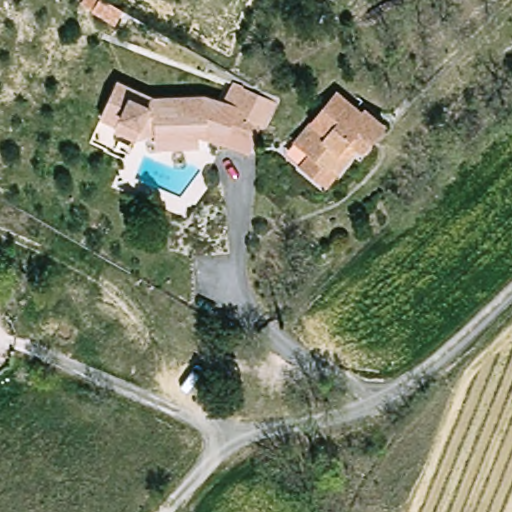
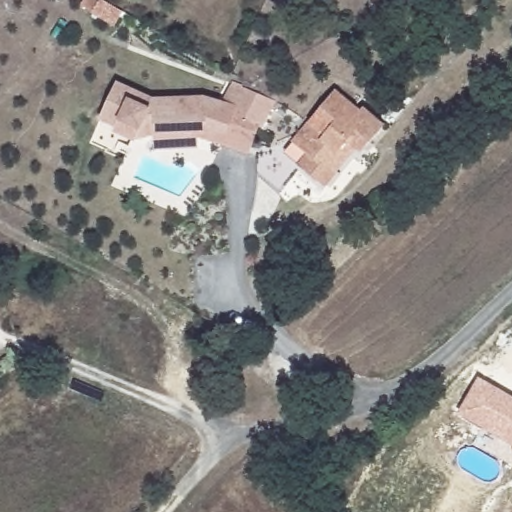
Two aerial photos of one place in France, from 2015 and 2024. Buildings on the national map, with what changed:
unchanged [(194,139),(152,132),(154,119),(155,111),(141,109),(133,121),(114,109),(117,105),(102,95),(124,62),(158,85),(208,90),(223,98),(226,100),(236,82),(244,87),(276,105),(261,130),(259,130),(250,144),(245,154),(219,139),(196,126),(194,139)]
unchanged [(318,179),(298,162),(307,153),(292,140),(337,90),(361,110),(379,122),(387,129),(366,154),(359,147),(335,174),(326,185),(318,179)]
new [(512,396),(512,445),(457,413),(479,376),(512,396)]

